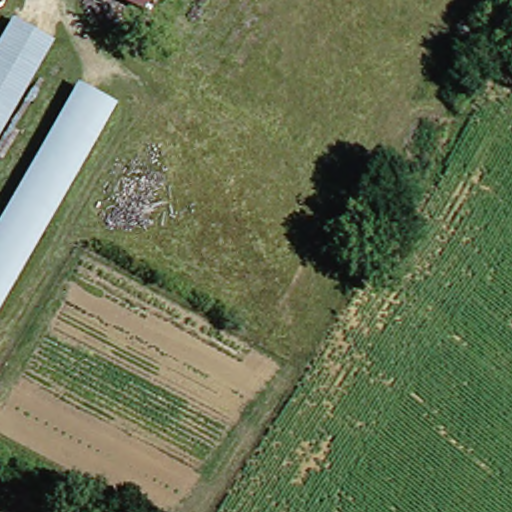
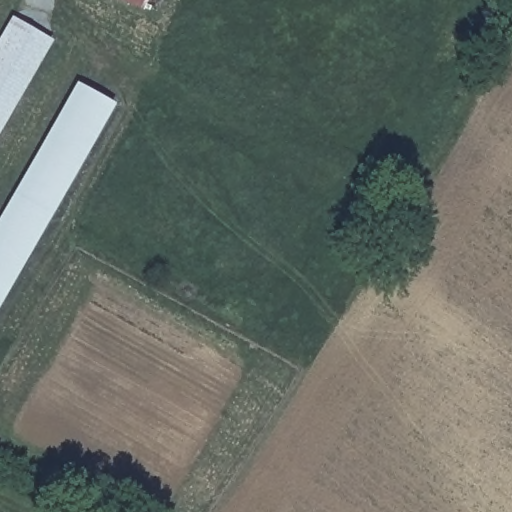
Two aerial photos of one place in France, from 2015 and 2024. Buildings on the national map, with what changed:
unchanged [(108,0),(140,0),(135,12),(108,0)]
unchanged [(3,19),(47,44),(0,127),(0,25),(3,19)]
unchanged [(0,293),(0,199),(65,85),(106,108),(0,293)]

